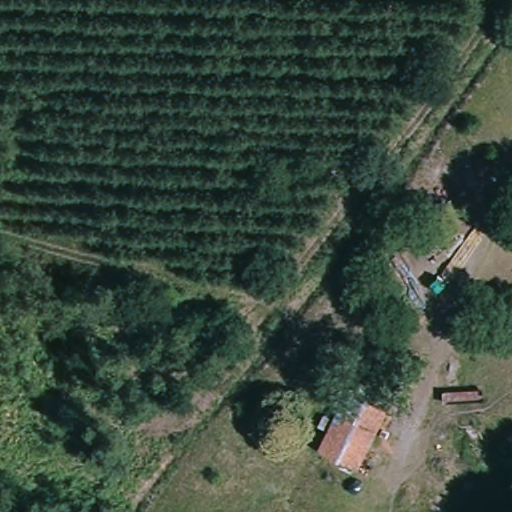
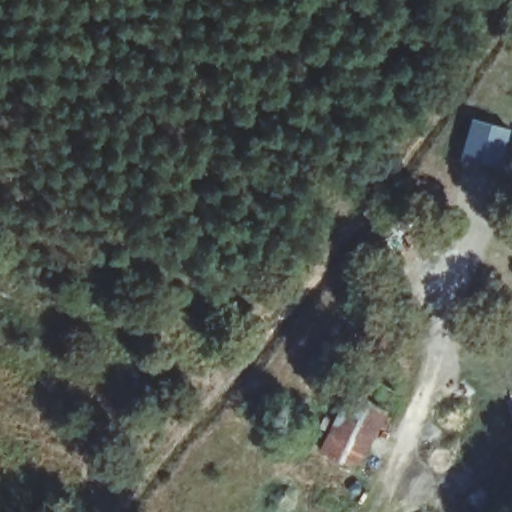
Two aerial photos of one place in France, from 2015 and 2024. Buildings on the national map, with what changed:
new [(471,117),(508,127),(496,166),(460,156),(471,117)]
unchanged [(348,388),(386,408),(356,470),(317,449),(348,388)]

